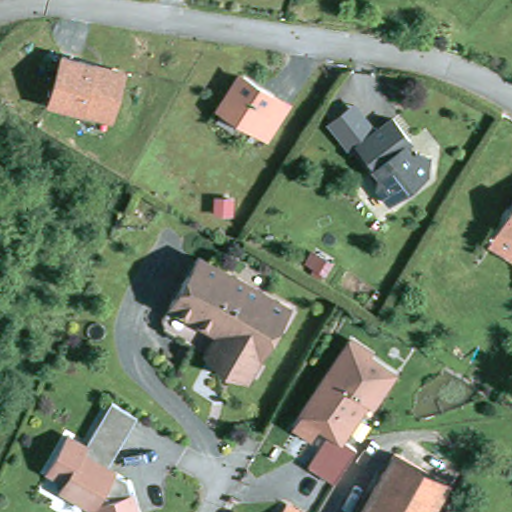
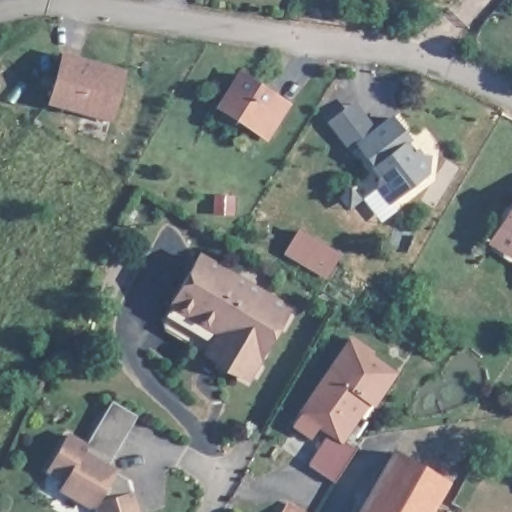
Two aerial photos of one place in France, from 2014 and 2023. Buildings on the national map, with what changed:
unchanged [(128,69),(113,122),(45,105),(58,52),(128,69)]
unchanged [(292,102),(267,142),(212,108),(237,69),(292,102)]
unchanged [(382,191),(382,181),(361,150),(397,123),(414,145),(408,150),(415,159),(421,156),(425,161),(432,163),(430,180),(394,207),(382,191)]
unchanged [(512,216),(512,237),(502,231),(512,216)]
new [(300,227),(340,250),(327,271),(287,248),(300,227)]
unchanged [(288,310),(248,380),(165,335),(163,324),(198,262),(288,310)]
unchanged [(398,371),(375,403),(371,400),(348,438),(360,448),(336,483),(305,464),(327,433),(317,428),(310,438),(291,425),(351,335),(398,371)]
unchanged [(61,493),(66,481),(47,474),(68,435),(83,443),(110,403),(137,418),(108,467),(127,480),(138,512),(93,512),(61,493)]
unchanged [(407,444),(460,474),(438,512),(367,512),(407,444)]
unchanged [(307,512),(280,512),(286,501),(307,512)]

